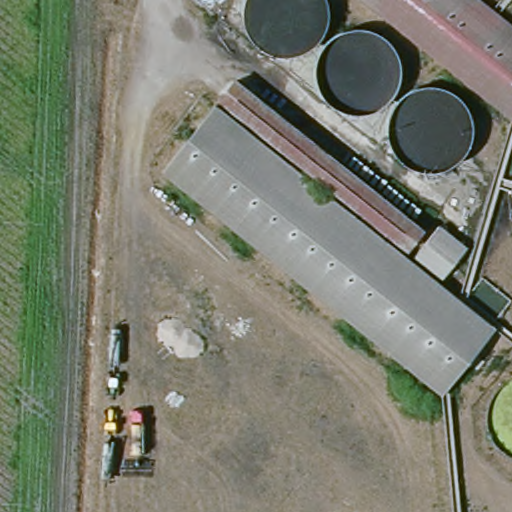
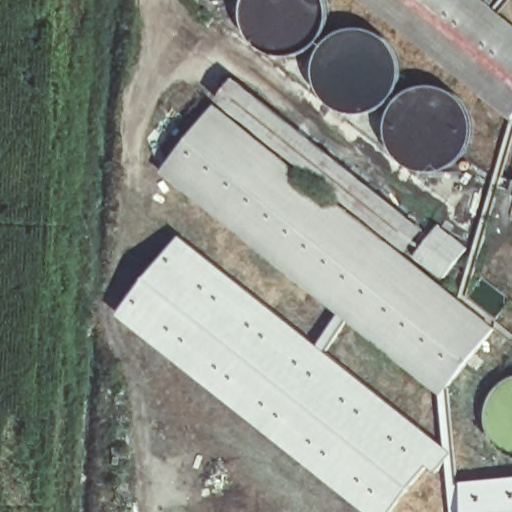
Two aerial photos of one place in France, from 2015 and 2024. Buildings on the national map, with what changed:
unchanged [(374,0),(477,0),(512,29),(512,114),(374,0)]
unchanged [(430,232),(440,222),(471,247),(440,282),(496,330),(443,397),(161,171),(234,76),(430,232)]
new [(117,316),(181,236),(452,452),(437,471),(429,465),(391,512),(366,512),(117,316)]
new [(512,475),(512,512),(460,512),(457,480),(512,475)]

